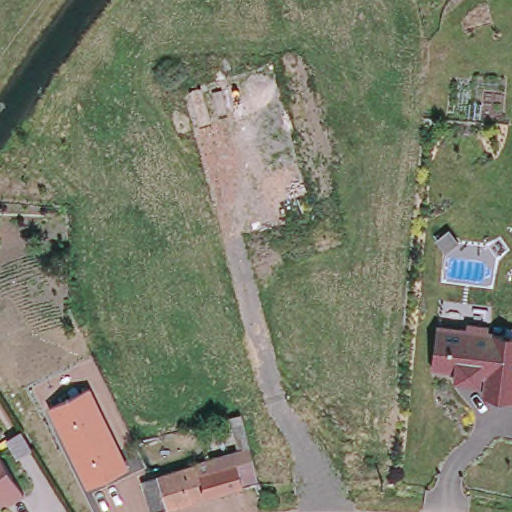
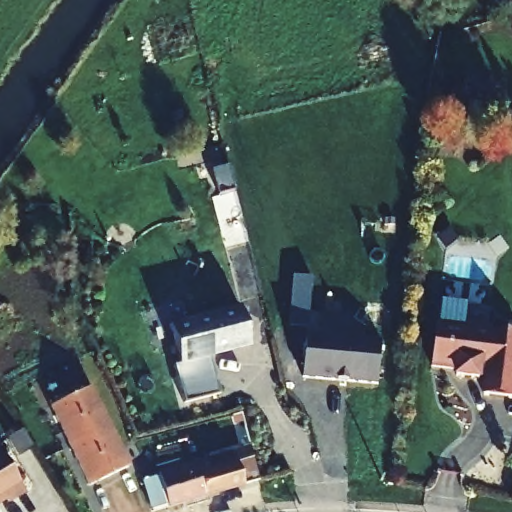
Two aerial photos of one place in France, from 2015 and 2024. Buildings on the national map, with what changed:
new [(243,307),(252,346),(180,361),(172,322),(243,307)]
unchanged [(512,400),(480,395),(481,382),(455,380),(455,370),(432,367),(435,324),(512,330),(512,400)]
new [(381,340),(377,385),(350,383),(350,375),(337,375),(337,382),(304,379),(308,333),(381,340)]
new [(220,393),(183,401),(175,363),(180,361),(209,355),(220,393)]
unchanged [(92,385),(129,465),(88,485),(50,406),(92,385)]
unchanged [(175,507),(165,475),(200,465),(200,462),(216,458),(219,468),(250,458),(243,429),(252,426),(265,481),(175,507)]
unchanged [(30,493),(12,502),(7,494),(0,498),(0,448),(2,446),(30,493)]

